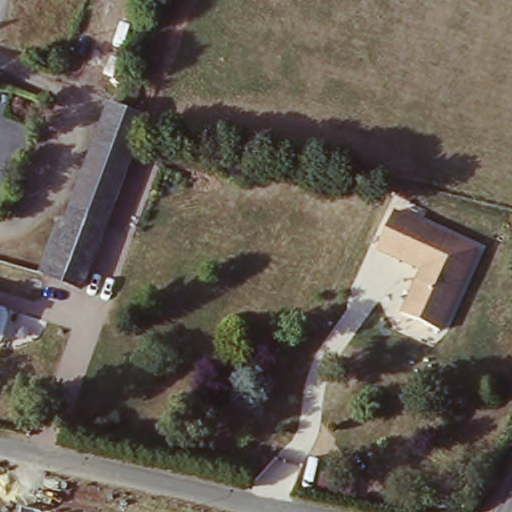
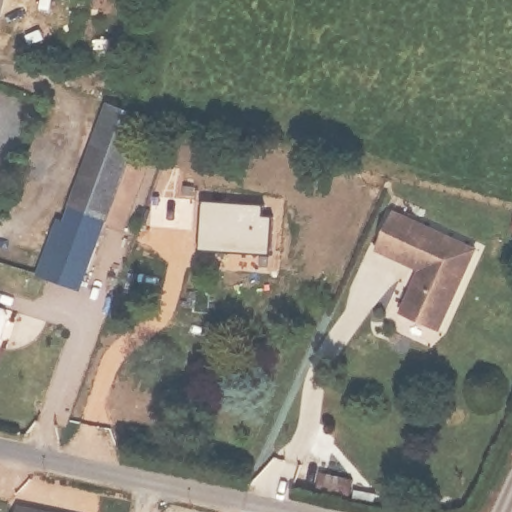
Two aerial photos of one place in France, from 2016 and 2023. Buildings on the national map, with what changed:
unchanged [(69,214),(75,197),(81,181),(88,164),(94,147),(100,130),(107,112),(110,114),(128,120),(143,126),(136,144),(130,161),(123,177),(117,194),(111,211),(105,227),(99,244),(80,295),(38,281),(58,229),(63,231),(69,214)]
new [(273,206),(270,255),(268,255),(268,247),(210,244),(210,252),(199,252),(202,203),(273,206)]
unchanged [(440,330),(400,312),(418,271),(377,252),(392,211),(478,248),(440,330)]
unchanged [(21,509),(35,512),(21,512),(21,509)]

